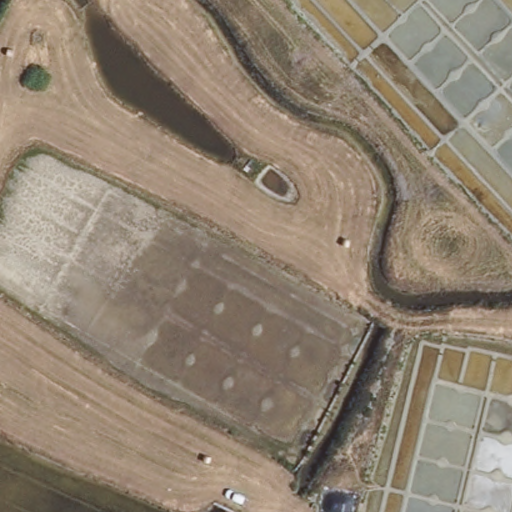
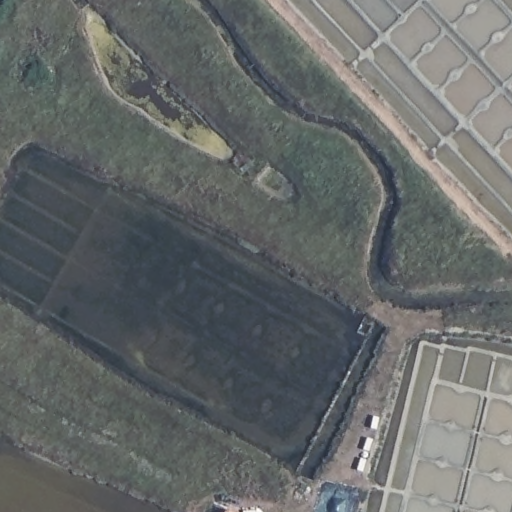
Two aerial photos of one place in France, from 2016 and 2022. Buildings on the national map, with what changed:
unchanged [(234,512),(224,512),(225,508),(234,512)]

